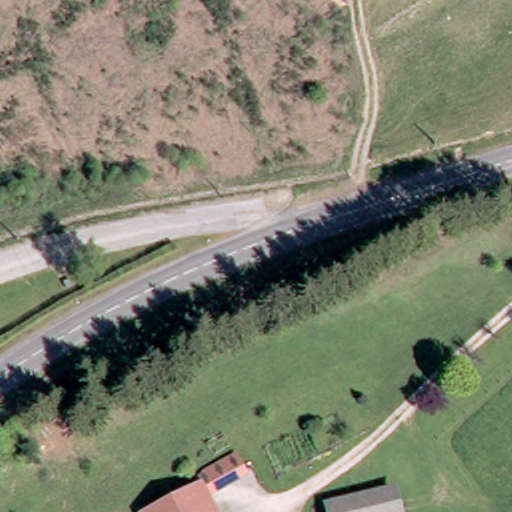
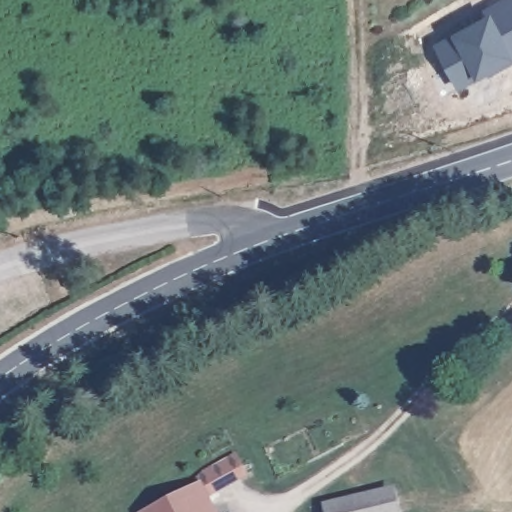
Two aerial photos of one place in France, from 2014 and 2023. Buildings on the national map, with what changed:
new [(488,75),(487,72),(460,87),(438,46),(490,17),(486,11),(508,0),(512,0),(512,62),(488,75)]
unchanged [(196,478),(202,479),(219,512),(140,512),(137,507),(196,478)]
unchanged [(363,503),(391,494),(395,512),(333,512),(333,510),(363,503)]

